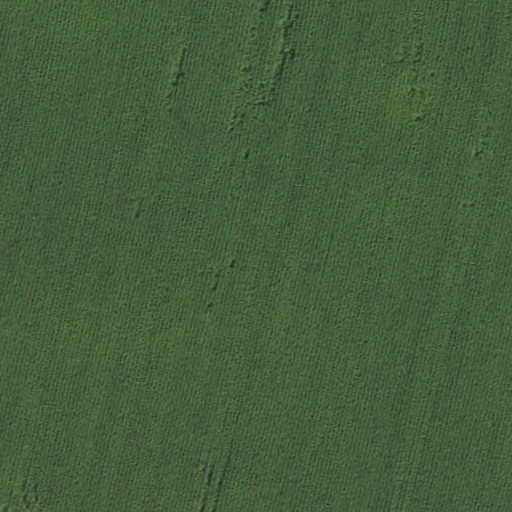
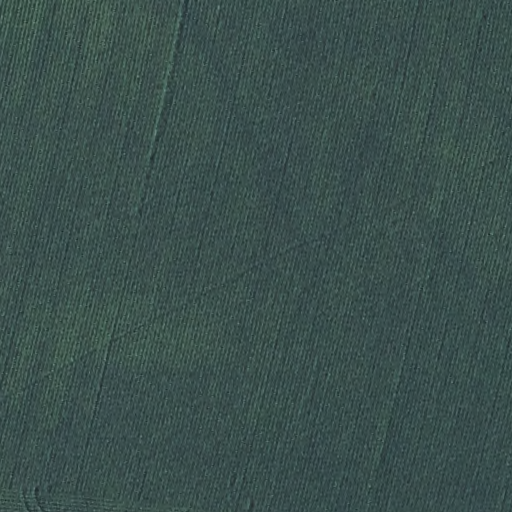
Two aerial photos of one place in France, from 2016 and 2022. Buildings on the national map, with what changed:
[]

